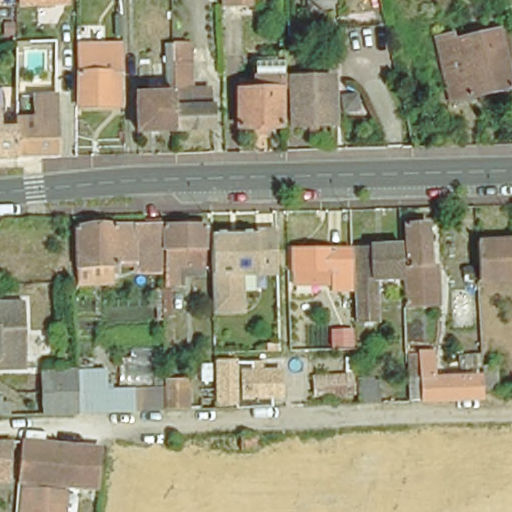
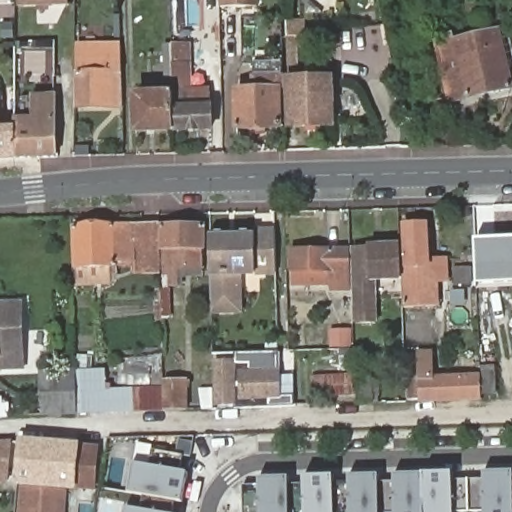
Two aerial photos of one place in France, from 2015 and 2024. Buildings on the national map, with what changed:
unchanged [(20,0),(67,0),(67,5),(20,6),(20,0)]
unchanged [(223,11),(223,0),(265,0),(265,11),(223,11)]
unchanged [(512,78),(512,93),(448,105),(445,91),(449,90),(442,54),(457,50),(456,45),(503,34),(512,78)]
unchanged [(176,53),(194,52),(195,62),(176,63),(176,53)]
unchanged [(125,54),(125,80),(126,110),(114,110),(114,113),(81,114),(82,55),(125,54)]
unchanged [(177,98),(177,96),(176,69),(195,68),(197,93),(212,94),(214,133),(178,134),(177,98)]
unchanged [(283,129),(240,130),(239,96),(259,95),(259,71),(283,71),(283,129)]
unchanged [(335,129),(293,129),(292,84),(333,84),(335,129)]
unchanged [(38,119),(38,96),(60,94),(59,158),(21,159),(21,128),(21,120),(38,119)]
unchanged [(141,135),(140,99),(177,98),(178,134),(141,135)]
unchanged [(5,128),(21,128),(21,159),(0,160),(0,113),(3,113),(5,128)]
unchanged [(165,223),(166,229),(166,263),(123,264),(123,268),(114,267),(115,284),(81,285),(81,269),(79,269),(77,226),(165,223)]
unchanged [(166,229),(208,228),(209,277),(189,278),(189,285),(167,289),(166,263),(166,229)]
unchanged [(407,274),(412,273),(409,230),(432,228),(434,273),(442,273),(444,312),(409,313),(407,274)]
unchanged [(279,233),(280,264),(281,270),(244,271),(245,309),(217,309),(216,291),(214,235),(279,233)]
unchanged [(476,241),(512,238),(512,280),(477,283),(476,241)]
unchanged [(358,251),(404,250),(405,282),(380,283),(380,290),(380,310),(361,312),(358,251)]
unchanged [(297,278),(296,255),(355,254),(357,304),(340,305),(339,289),(315,289),(297,290),(297,278)]
unchanged [(24,368),(4,368),(3,359),(0,359),(0,303),(21,303),(24,368)]
unchanged [(332,333),(349,332),(350,347),(334,348),(332,333)]
unchanged [(480,354),(492,352),(492,366),(496,365),(497,396),(481,397),(480,354)]
unchanged [(406,355),(421,354),(433,354),(434,379),(478,378),(479,400),(408,402),(407,381),(406,355)]
unchanged [(201,391),(214,389),(216,362),(238,362),(239,371),(240,379),(254,379),(254,398),(267,399),(266,409),(201,412),(201,391)]
unchanged [(285,369),(286,399),(267,399),(254,398),(254,379),(240,379),(239,371),(285,369)]
unchanged [(41,371),(76,371),(77,384),(77,414),(42,414),(41,371)]
unchanged [(359,374),(360,396),(316,398),(315,376),(359,374)]
unchanged [(362,380),(375,379),(377,403),(364,404),(362,380)]
unchanged [(105,383),(110,383),(111,397),(134,396),(134,389),(163,389),(163,382),(187,381),(188,410),(163,411),(137,412),(97,413),(77,414),(77,384),(105,383)]
unchanged [(11,415),(0,415),(0,398),(10,398),(11,415)]
demolished [(241,436),(242,453),(229,454),(229,437),(241,436)]
unchanged [(9,483),(0,481),(0,440),(14,439),(9,483)]
unchanged [(164,439),(173,439),(173,447),(165,448),(164,439)]
unchanged [(100,446),(95,489),(55,484),(23,481),(19,481),(24,441),(40,441),(100,446)]
new [(152,466),(154,451),(182,456),(181,472),(188,473),(183,503),(176,502),(175,512),(125,512),(126,508),(138,509),(140,496),(128,494),(135,462),(152,466)]
new [(485,512),(470,512),(245,512),(245,486),(260,486),(260,478),(290,477),(290,486),(304,484),(305,476),(334,476),(335,484),(350,484),(350,476),(379,474),(379,483),(394,483),(394,474),(452,473),(452,480),(484,479),(484,472),(512,471),(512,512),(485,512)]
unchanged [(53,512),(20,512),(23,481),(55,484),(53,512)]

